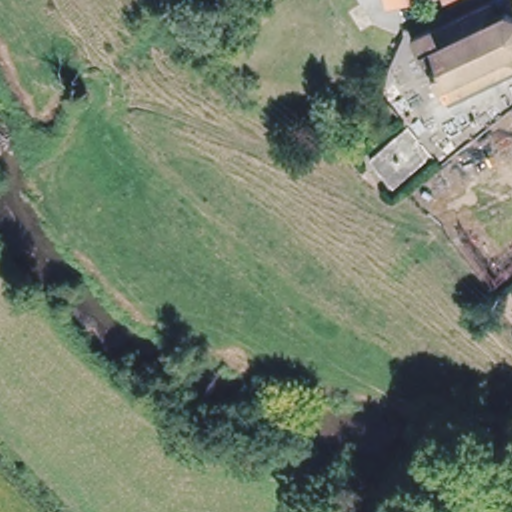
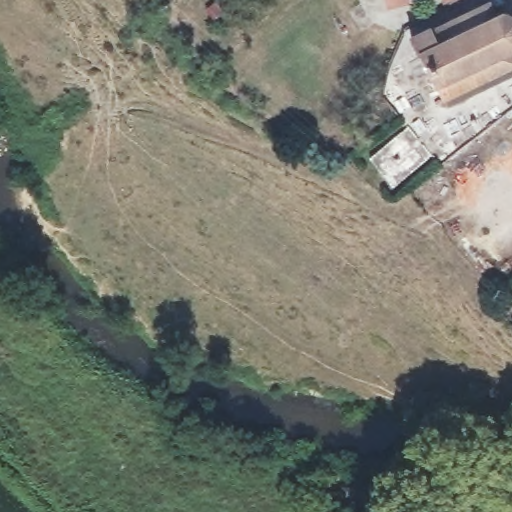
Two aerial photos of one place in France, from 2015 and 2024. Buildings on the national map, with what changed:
unchanged [(388,0),(410,0),(390,8),(388,0)]
unchanged [(495,0),(500,14),(512,6),(512,64),(450,95),(420,38),(495,0)]

